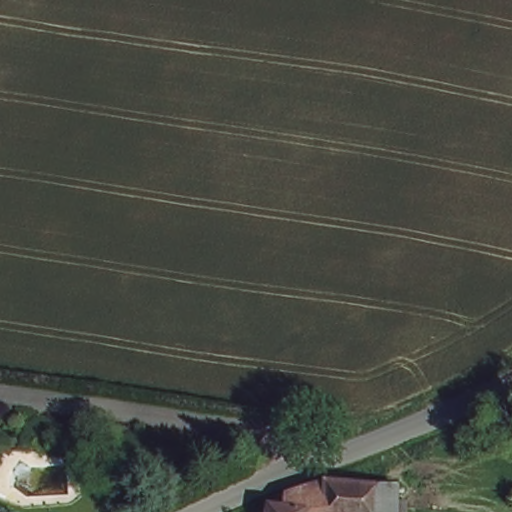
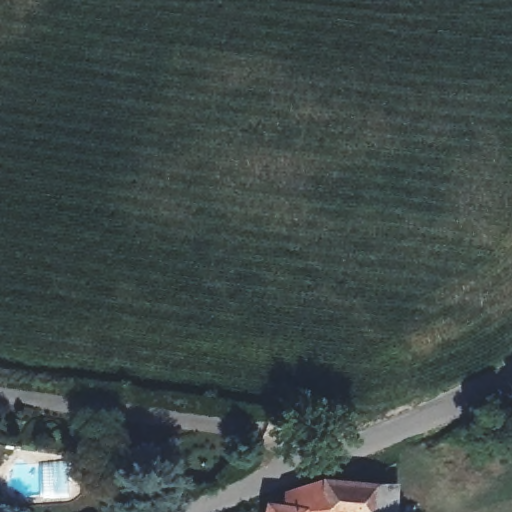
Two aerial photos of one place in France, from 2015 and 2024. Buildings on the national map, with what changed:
unchanged [(271,494),(289,495),(289,488),(331,473),(404,486),(401,512),(267,512),(271,494)]

